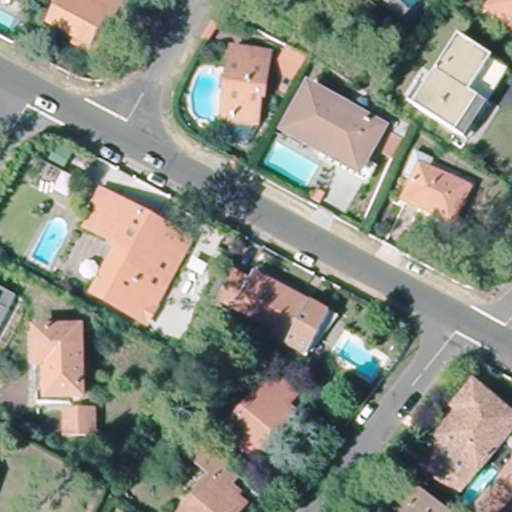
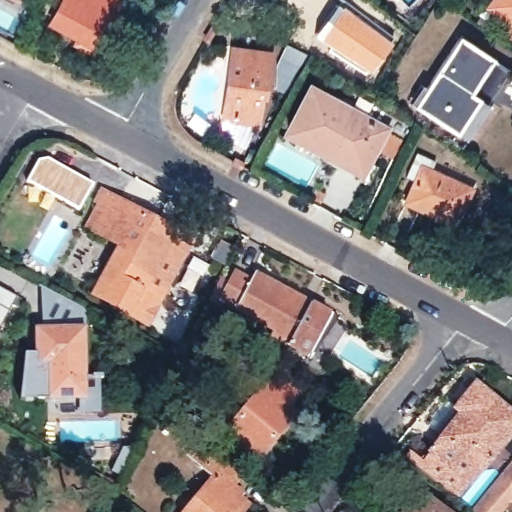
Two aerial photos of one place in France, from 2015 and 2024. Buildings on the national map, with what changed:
unchanged [(89,53),(71,44),(75,36),(46,21),(57,0),(119,0),(111,16),(102,12),(94,30),(100,33),(89,53)]
unchanged [(492,0),(512,0),(512,25),(487,7),(492,0)]
new [(342,4),(394,42),(370,75),(317,37),(342,4)]
unchanged [(469,136),(453,126),(413,100),(459,32),(505,62),(483,97),(490,101),(469,136)]
unchanged [(292,63),(280,57),(288,43),(310,54),(303,69),(295,82),(285,75),(292,63)]
unchanged [(265,54),(254,119),(219,113),(230,47),(265,54)]
unchanged [(346,110),(348,106),(384,127),(364,164),(328,145),(325,151),(288,131),(310,91),(346,110)]
unchanged [(459,225),(409,202),(419,181),(410,176),(421,153),(442,163),(437,173),(475,191),(459,225)]
unchanged [(323,194),(319,203),(313,200),(318,191),(323,194)]
unchanged [(151,301),(139,325),(94,301),(84,296),(109,248),(76,229),(94,195),(174,239),(163,262),(169,266),(151,301)]
unchanged [(325,307),(330,309),(309,354),(287,343),(297,322),(282,314),(275,328),(218,300),(232,272),(249,280),(253,272),(325,307)]
unchanged [(14,294),(0,321),(0,286),(14,294)]
unchanged [(84,336),(86,401),(40,400),(40,336),(84,336)]
unchanged [(245,446),(226,431),(218,425),(232,409),(239,414),(276,368),(300,388),(288,406),(296,413),(263,451),(258,458),(245,446)]
unchanged [(430,455),(438,444),(433,439),(457,411),(476,389),(512,419),(512,433),(468,486),(456,495),(419,465),(430,455)]
unchanged [(67,414),(98,414),(98,438),(66,438),(67,414)]
unchanged [(244,491),(238,499),(244,505),(239,512),(181,512),(212,475),(189,456),(203,437),(247,472),(236,485),(244,491)]
unchanged [(476,512),(472,508),(512,461),(512,493),(496,512),(476,512)]
unchanged [(412,512),(417,505),(425,512),(412,512)]

